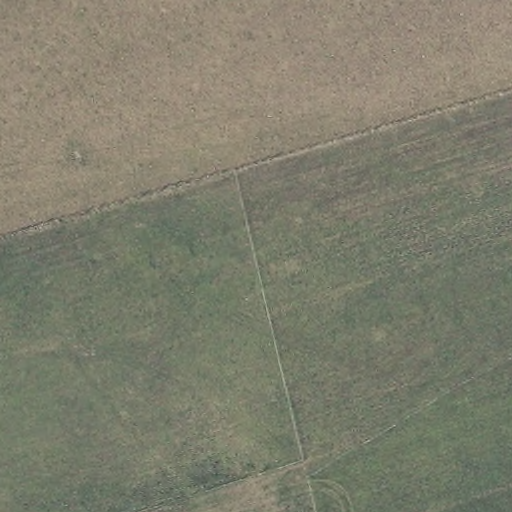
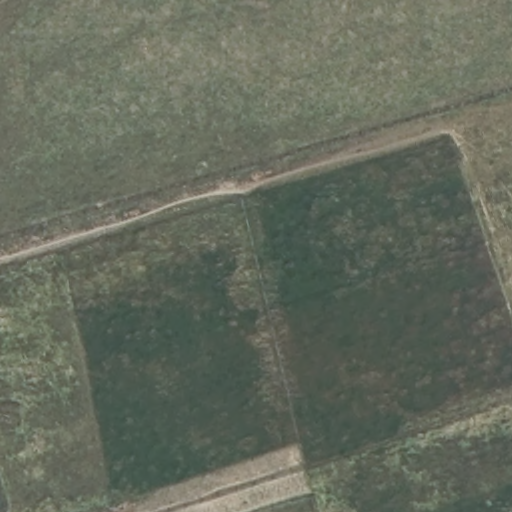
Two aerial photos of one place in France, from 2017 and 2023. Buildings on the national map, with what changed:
[]

